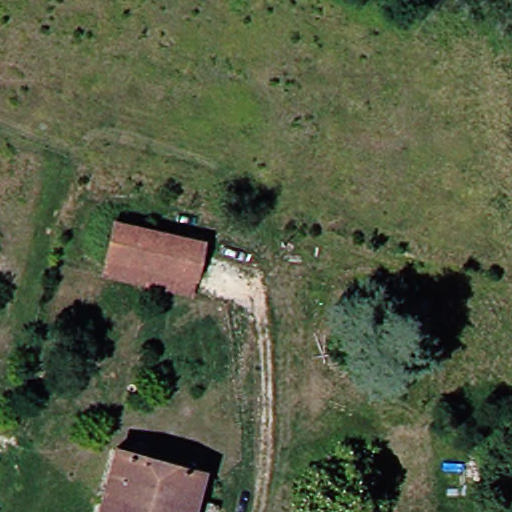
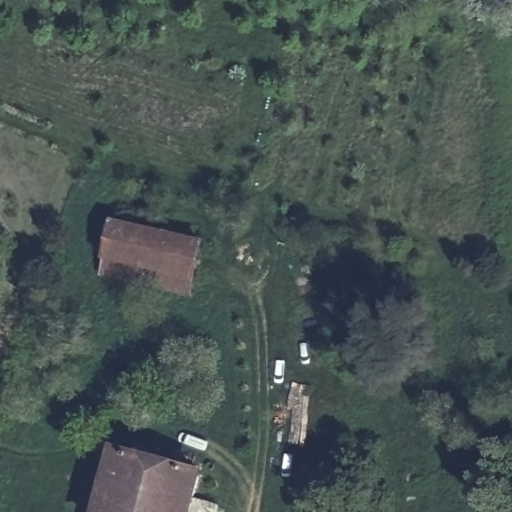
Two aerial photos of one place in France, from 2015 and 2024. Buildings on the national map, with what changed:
unchanged [(105,209),(198,229),(187,266),(98,242),(105,209)]
unchanged [(187,266),(183,283),(93,262),(98,242),(187,266)]
unchanged [(102,447),(191,470),(179,512),(85,512),(102,447)]

